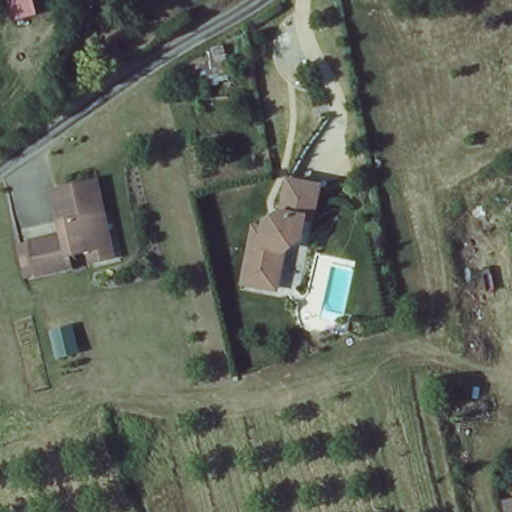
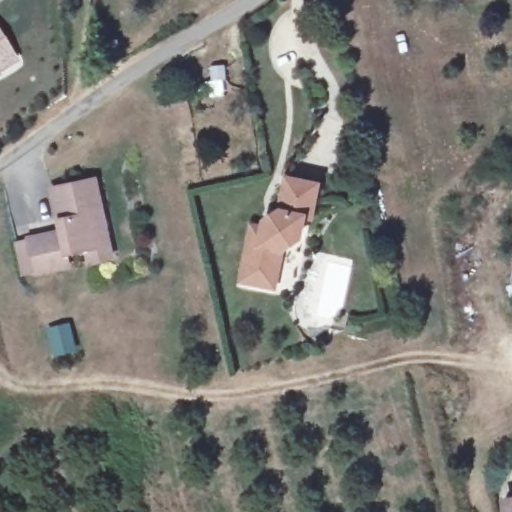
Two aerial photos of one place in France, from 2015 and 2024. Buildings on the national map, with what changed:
new [(0,74),(0,34),(18,63),(0,74)]
unchanged [(12,242),(23,240),(23,237),(56,231),(48,187),(90,179),(98,211),(107,256),(85,261),(83,249),(62,253),(65,265),(30,272),(30,270),(18,272),(12,242)]
unchanged [(233,273),(237,260),(248,221),(260,224),(261,217),(286,207),(294,179),(324,189),(314,221),(308,219),(302,239),(276,247),(269,269),(265,283),(233,273)]
unchanged [(61,321),(68,346),(53,349),(46,324),(61,321)]
unchanged [(511,512),(509,502),(512,502),(512,512),(511,512)]

